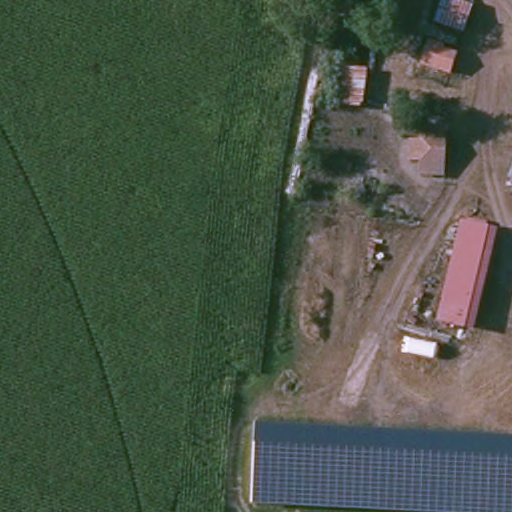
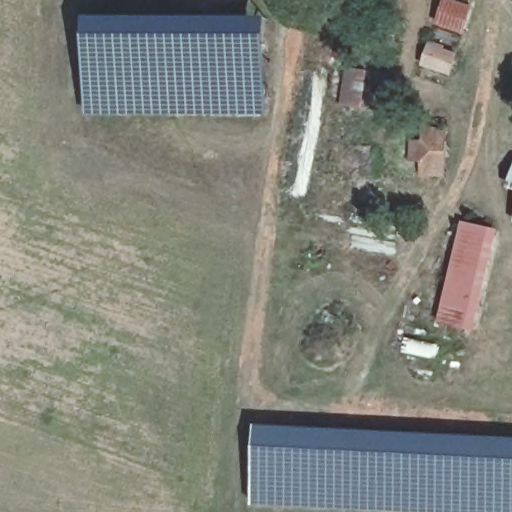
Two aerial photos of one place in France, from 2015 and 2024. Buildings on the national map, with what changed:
unchanged [(470,6),(459,34),(430,24),(438,0),(454,0),(470,6)]
new [(86,107),(85,17),(268,17),(266,108),(86,107)]
unchanged [(452,51),(446,73),(402,60),(409,38),(452,51)]
unchanged [(363,71),(357,112),(336,108),(340,65),(363,71)]
unchanged [(439,166),(406,159),(412,132),(445,139),(439,166)]
unchanged [(489,230),(470,340),(434,333),(453,221),(489,230)]
unchanged [(512,438),(512,512),(390,512),(253,505),(257,424),(512,438)]

